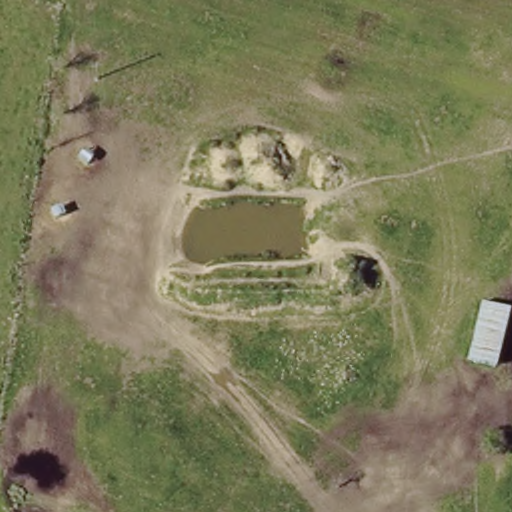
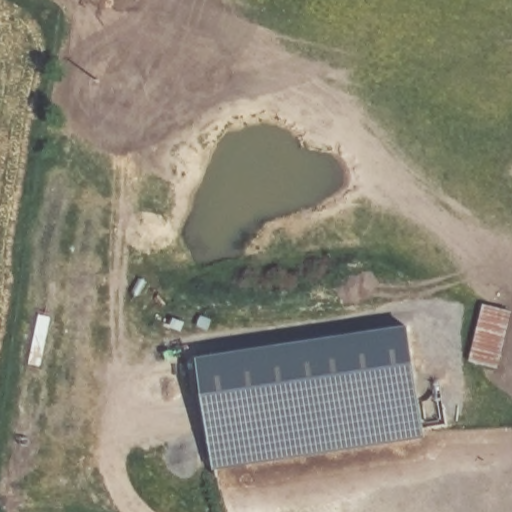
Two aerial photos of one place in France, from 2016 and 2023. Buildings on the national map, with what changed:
unchanged [(472,367),(489,303),(512,309),(512,341),(500,375),(472,367)]
new [(203,362),(411,330),(428,435),(219,467),(203,362)]

